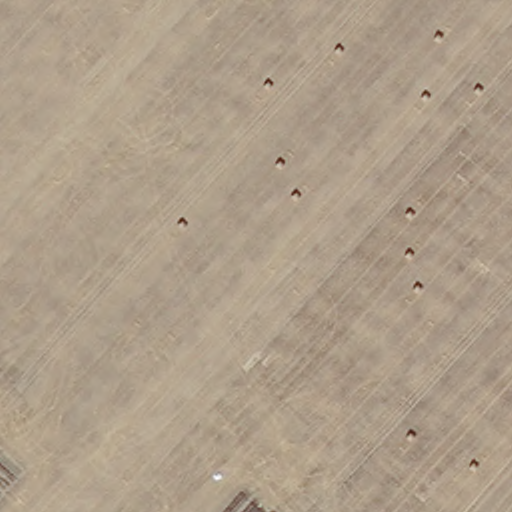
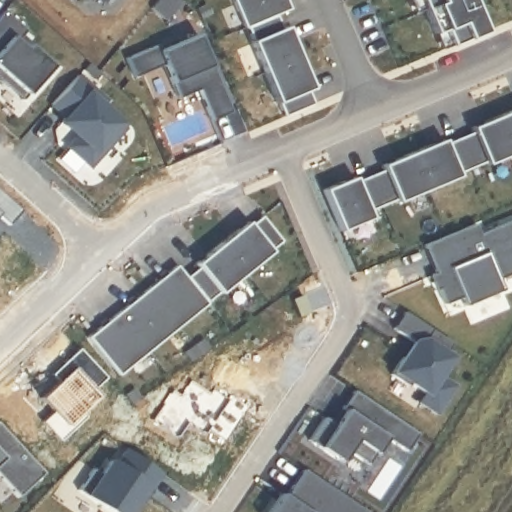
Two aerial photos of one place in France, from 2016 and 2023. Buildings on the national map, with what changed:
new [(292,7),(279,14),(285,27),(290,26),(315,86),(309,88),(315,102),(287,114),(282,100),(280,101),(254,39),(256,38),(250,25),(247,26),(237,0),(290,0),(292,7)]
new [(485,31),(445,49),(433,22),(425,26),(413,0),(473,0),(485,31)]
new [(29,27),(20,38),(27,44),(31,41),(55,62),(25,97),(0,74),(0,13),(6,7),(29,27)]
new [(159,42),(162,47),(200,32),(232,109),(214,117),(201,87),(180,95),(166,61),(136,73),(128,55),(159,42)]
new [(107,104),(102,109),(125,130),(100,158),(96,154),(86,164),(70,149),(81,137),(65,122),(67,120),(52,107),(79,78),(107,104)]
new [(488,161),(461,173),(462,176),(402,201),(400,199),(372,211),(376,217),(344,230),(327,190),(358,176),(360,181),(387,170),(387,165),(447,139),(449,143),(477,132),(475,128),(512,112),(512,154),(490,164),(488,161)]
new [(180,263),(189,275),(201,265),(197,261),(250,219),(253,223),(264,214),(283,239),(272,247),(275,249),(121,373),(91,334),(180,263)]
new [(453,349),(447,358),(453,360),(439,381),(452,388),(434,418),(417,407),(423,399),(385,376),(407,342),(392,334),(405,316),(453,349)]
new [(420,432),(408,450),(388,436),(370,462),(350,447),(343,459),(312,438),(326,416),(337,423),(347,408),(345,406),(356,389),(420,432)]
new [(46,469),(20,493),(0,471),(0,419),(46,469)]
new [(101,477),(108,463),(115,467),(125,452),(159,475),(140,504),(135,502),(129,512),(105,512),(77,494),(91,471),(101,477)]

